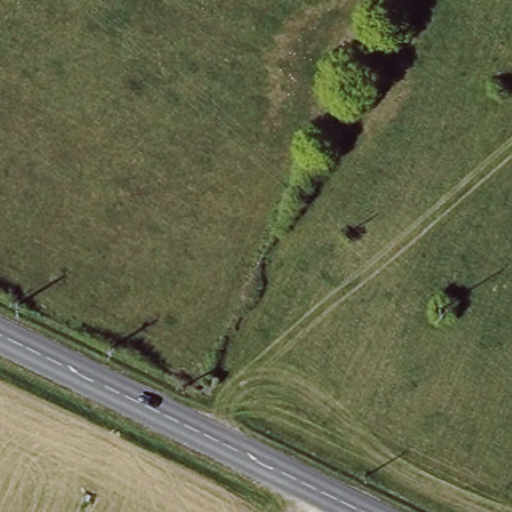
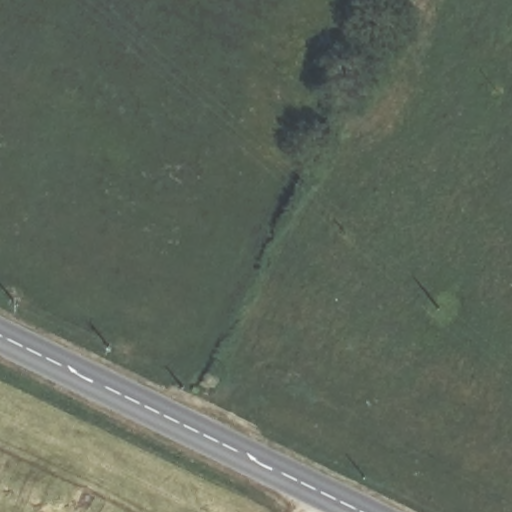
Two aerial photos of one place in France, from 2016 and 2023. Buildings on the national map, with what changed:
unchanged [(212,386),(232,395),(222,413),(204,404),(212,386)]

